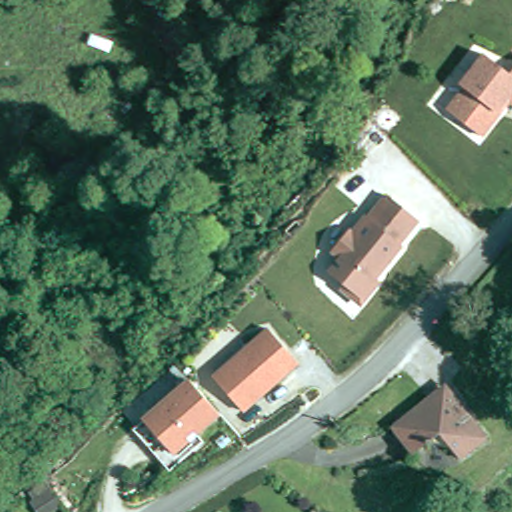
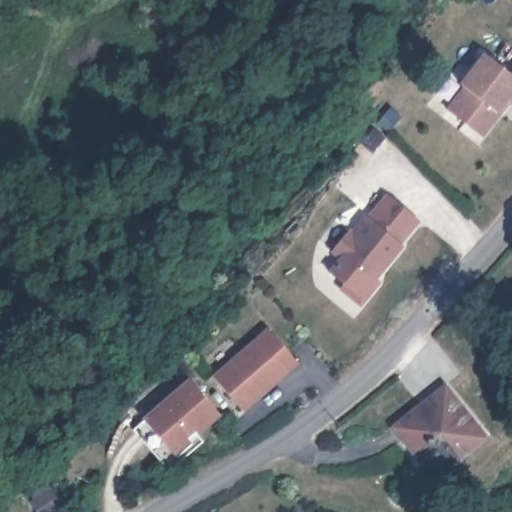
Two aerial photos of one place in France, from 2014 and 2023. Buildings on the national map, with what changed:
unchanged [(190,43),(177,54),(162,37),(174,26),(190,43)]
unchanged [(482,134),(445,106),(458,82),(482,54),(510,72),(512,70),(512,107),(505,103),(482,134)]
unchanged [(391,123),(381,139),(368,129),(379,113),(391,123)]
unchanged [(338,257),(332,252),(350,229),(354,233),(386,194),(418,221),(400,243),(403,247),(377,279),(380,282),(363,304),(326,275),(338,257)]
unchanged [(299,364),(245,413),(211,376),(266,327),(299,364)]
unchanged [(220,413),(174,452),(141,419),(186,379),(220,413)]
unchanged [(460,457),(450,444),(426,441),(413,451),(392,426),(434,391),(444,383),(451,392),(487,433),(460,457)]

